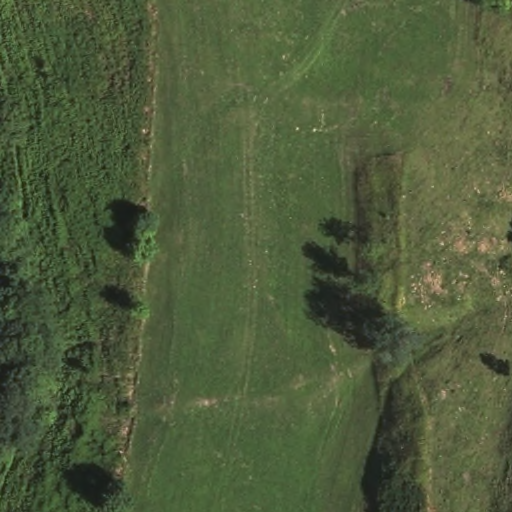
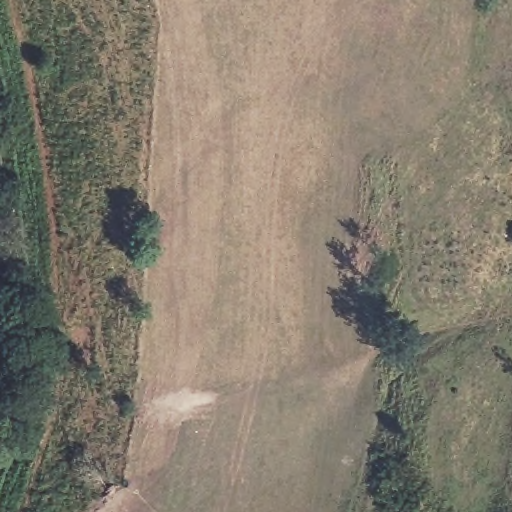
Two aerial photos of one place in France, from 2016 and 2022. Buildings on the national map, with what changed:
[]

